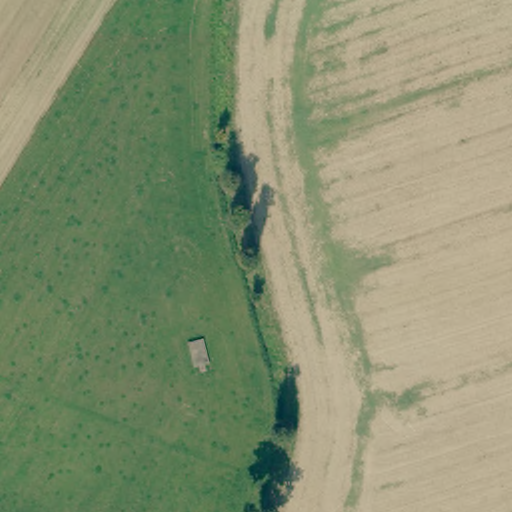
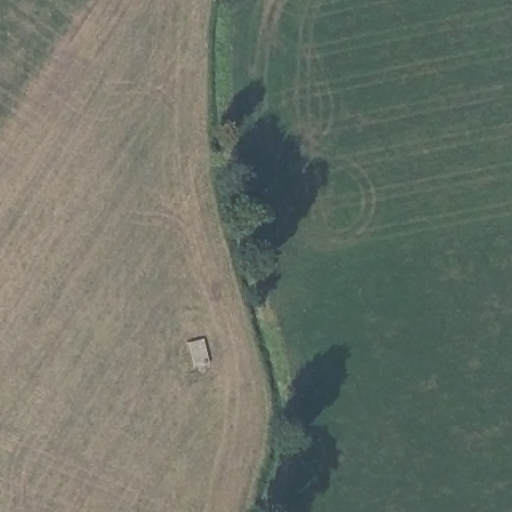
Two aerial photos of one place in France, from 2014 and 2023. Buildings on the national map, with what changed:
unchanged [(204,338),(209,364),(195,367),(189,340),(204,338)]

